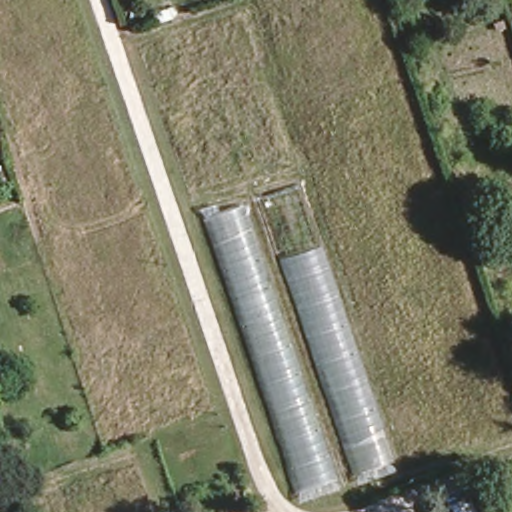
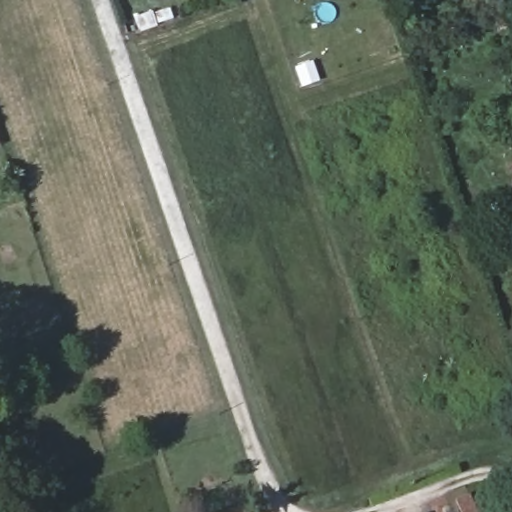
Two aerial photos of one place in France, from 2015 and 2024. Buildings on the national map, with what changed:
demolished [(399,469),(304,504),(205,208),(302,179),(399,469)]

